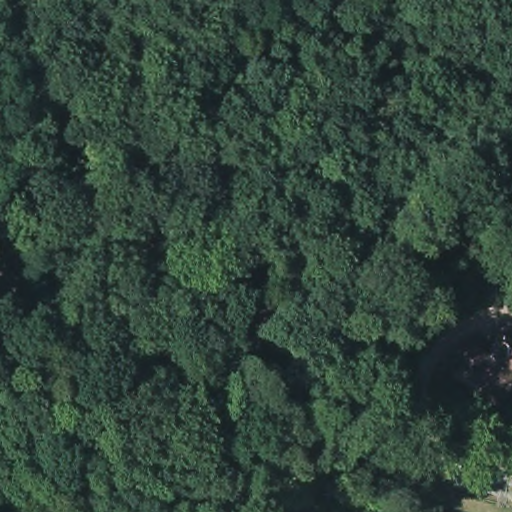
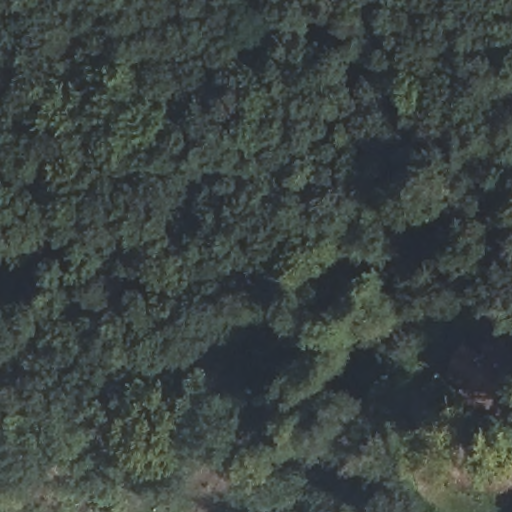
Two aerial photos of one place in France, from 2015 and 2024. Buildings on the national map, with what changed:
unchanged [(512,379),(499,400),(476,388),(479,382),(463,372),(475,353),(478,346),(491,354),(503,337),(512,344),(512,379)]

